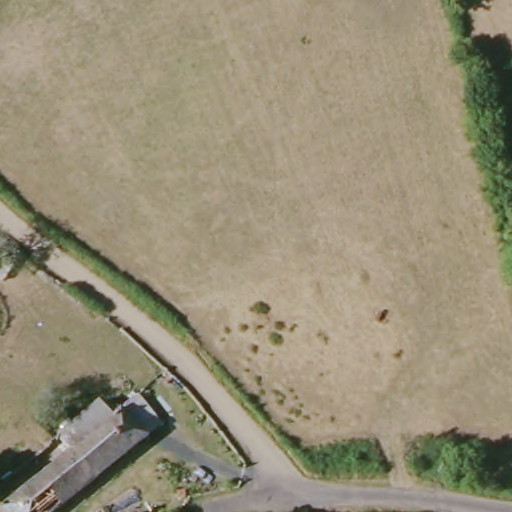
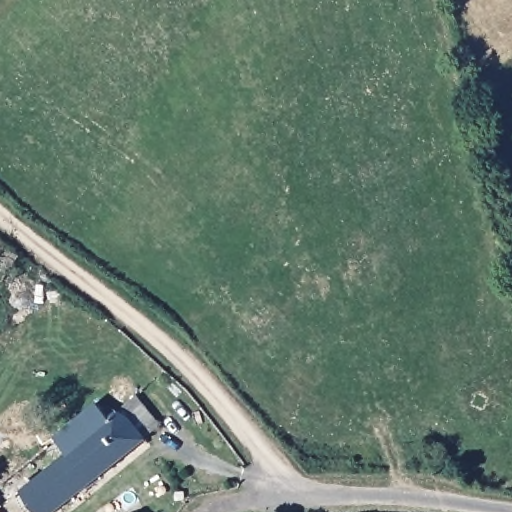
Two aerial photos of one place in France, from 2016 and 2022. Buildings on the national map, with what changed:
unchanged [(0,512),(0,473),(93,402),(99,409),(111,400),(118,408),(138,434),(47,512),(0,512)]

